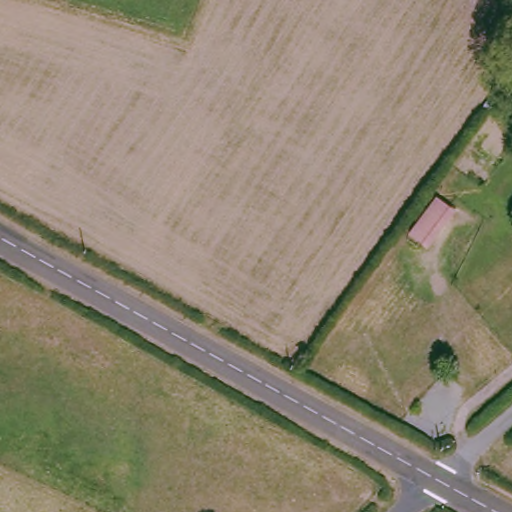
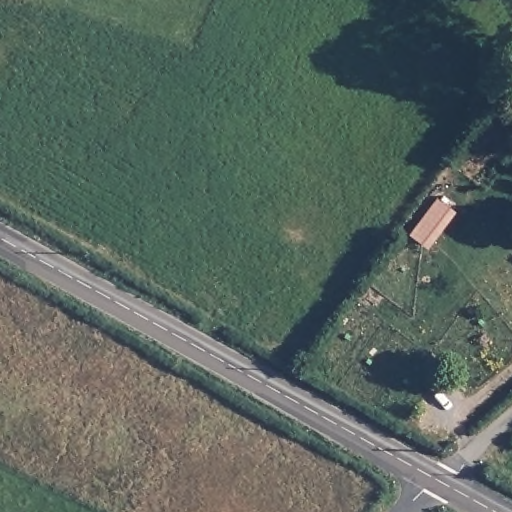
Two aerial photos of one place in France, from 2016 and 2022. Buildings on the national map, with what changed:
unchanged [(440,200),(462,217),(432,255),(410,238),(440,200)]

